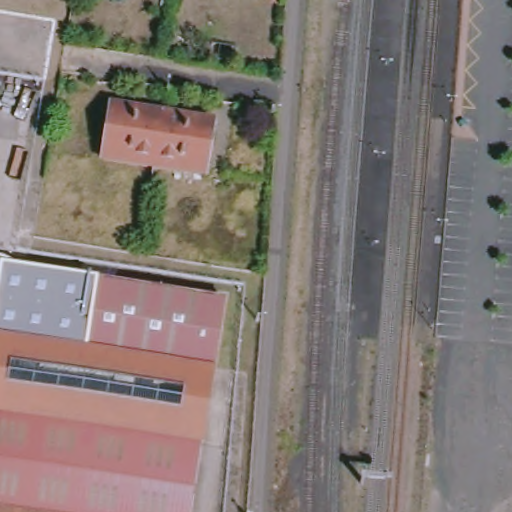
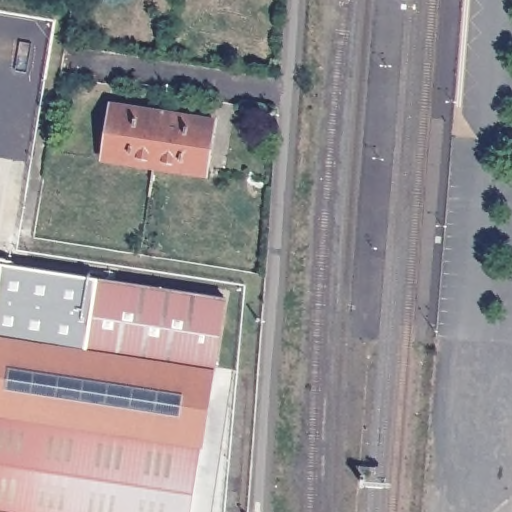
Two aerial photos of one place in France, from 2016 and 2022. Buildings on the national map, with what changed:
unchanged [(151,165),(100,157),(108,102),(160,111),(151,165)]
unchanged [(212,119),(202,174),(151,165),(160,111),(212,119)]
unchanged [(129,282),(213,293),(181,512),(0,512),(0,261),(88,276),(117,280),(123,281),(129,282)]

